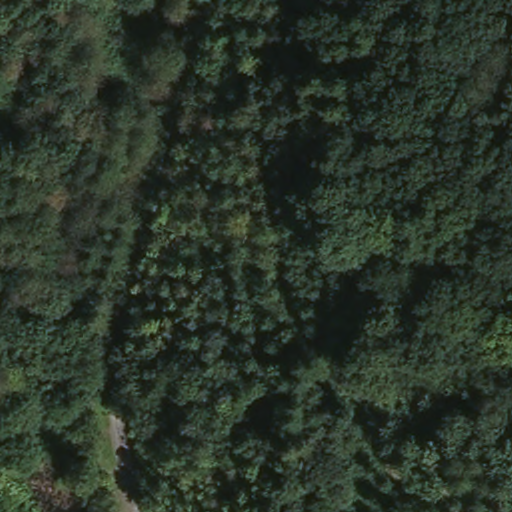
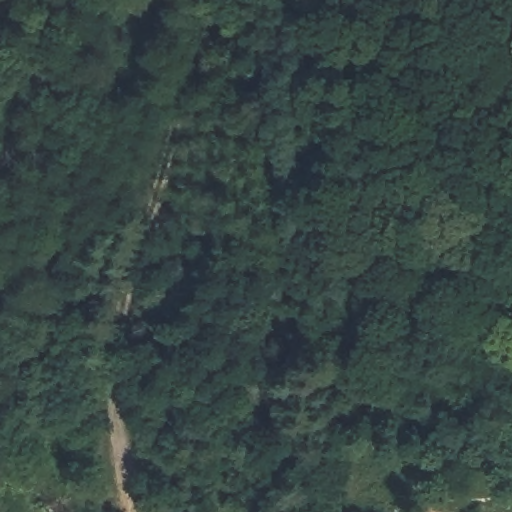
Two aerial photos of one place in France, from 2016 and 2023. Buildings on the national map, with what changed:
[]

